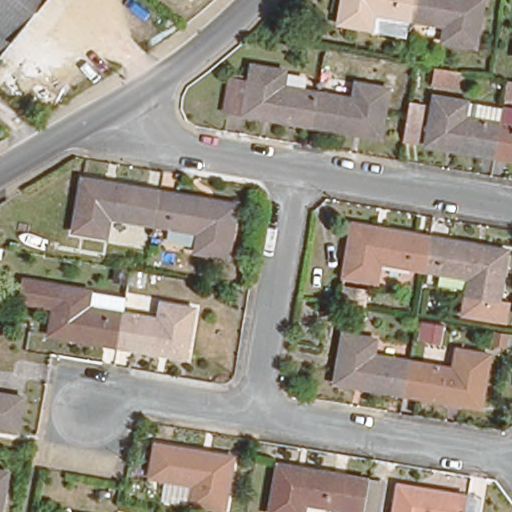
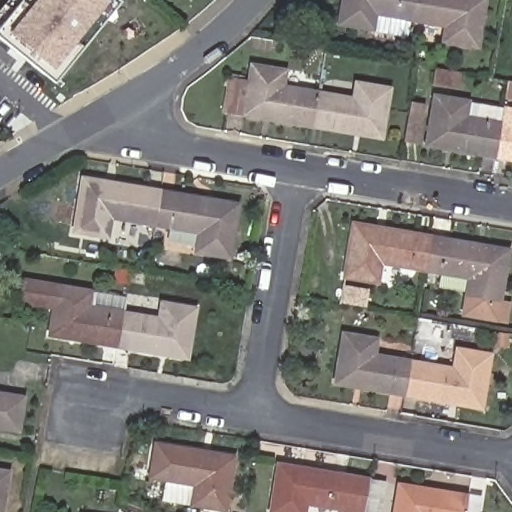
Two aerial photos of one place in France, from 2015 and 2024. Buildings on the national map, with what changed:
demolished [(0,53),(0,0),(42,0),(0,53)]
new [(52,80),(0,37),(0,20),(16,0),(116,0),(52,80)]
unchanged [(402,36),(366,30),(333,24),(338,0),(408,0),(407,7),(405,19),(402,36)]
unchanged [(472,48),(437,42),(439,25),(405,19),(407,7),(408,0),(479,0),(472,48)]
unchanged [(225,106),(230,73),(249,76),(252,60),(285,66),(282,82),(319,88),(314,121),(225,106)]
unchanged [(436,86),(438,67),(464,72),(462,90),(436,86)]
unchanged [(319,88),(352,93),(355,78),(387,84),(379,132),(314,121),(319,88)]
unchanged [(512,102),(510,101),(512,88),(512,102)]
unchanged [(432,146),(440,96),(472,102),(508,108),(506,124),(501,157),(432,146)]
unchanged [(410,143),(415,115),(416,108),(428,110),(427,117),(422,145),(410,143)]
unchanged [(508,108),(512,109),(512,159),(501,157),(506,124),(508,108)]
unchanged [(152,196),(148,220),(104,212),(100,231),(67,226),(77,172),(155,186),(152,196)]
unchanged [(232,201),(222,254),(189,248),(193,228),(148,220),(152,196),(155,186),(232,201)]
unchanged [(378,263),(375,282),(343,277),(353,224),(432,237),(426,272),(378,263)]
unchanged [(505,324),(484,321),(466,318),(470,298),(472,279),(426,272),(432,237),(510,251),(501,304),(507,306),(505,324)]
unchanged [(45,334),(49,307),(17,302),(20,280),(119,297),(117,312),(111,345),(45,334)]
unchanged [(117,312),(152,317),(155,302),(189,308),(181,357),(111,345),(117,312)]
unchanged [(335,383),(343,333),(375,338),(372,355),(411,361),(405,395),(335,383)]
unchanged [(506,335),(503,348),(490,346),(492,333),(506,335)]
unchanged [(411,361),(448,368),(451,351),(483,357),(475,407),(405,395),(411,361)]
unchanged [(27,397),(21,430),(0,427),(0,393),(27,397)]
unchanged [(232,457),(224,510),(162,499),(166,480),(152,478),(157,444),(232,457)]
unchanged [(367,480),(362,512),(340,512),(341,509),(305,503),(304,512),(270,512),(277,466),(346,477),(367,480)]
unchanged [(0,512),(0,472),(7,473),(0,512)]
unchanged [(464,512),(395,512),(399,486),(467,496),(464,512)]
unchanged [(479,498),(477,512),(464,512),(467,496),(479,498)]

